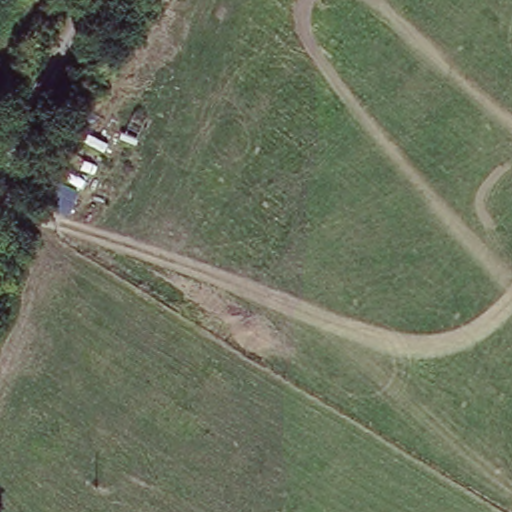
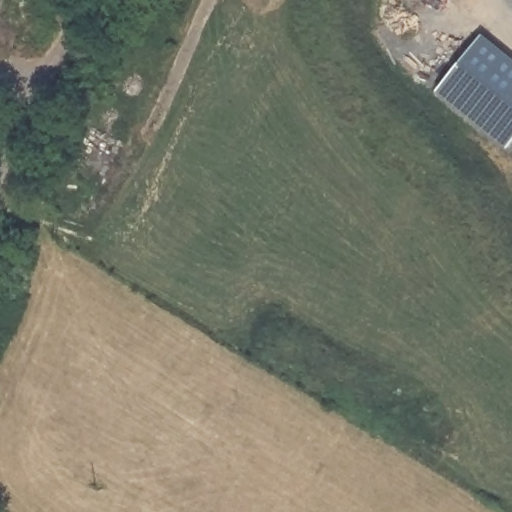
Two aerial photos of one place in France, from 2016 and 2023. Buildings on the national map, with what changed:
new [(512,137),(503,148),(435,92),(481,31),(512,58),(512,137)]
new [(67,217),(47,208),(57,182),(78,190),(67,217)]

